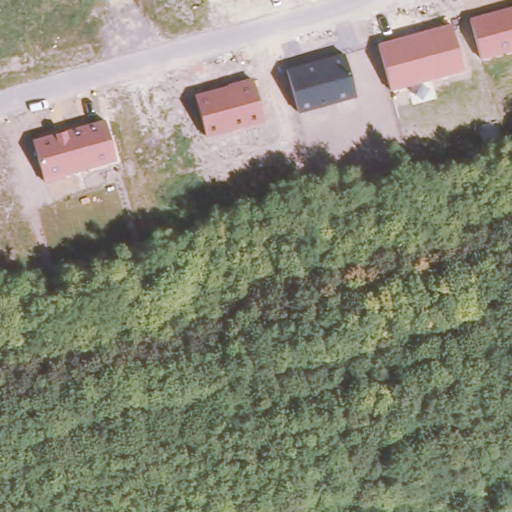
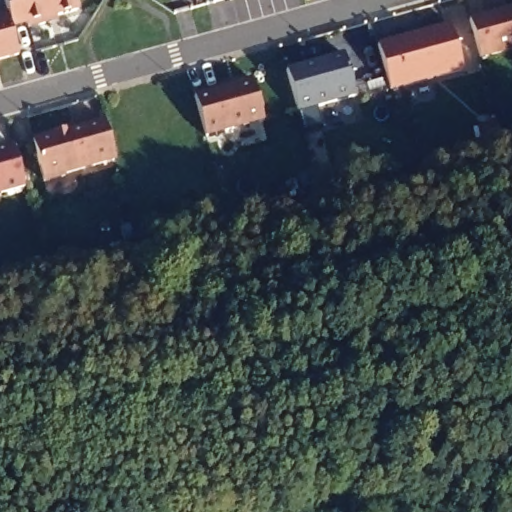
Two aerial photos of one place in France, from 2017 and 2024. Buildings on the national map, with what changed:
new [(78,0),(80,6),(46,16),(47,20),(32,25),(30,21),(13,25),(10,11),(6,0),(78,0)]
unchanged [(470,17),(512,7),(512,51),(482,59),(470,17)]
new [(13,25),(21,51),(0,57),(0,14),(10,11),(13,25)]
unchanged [(378,44),(452,24),(465,72),(391,91),(378,44)]
unchanged [(287,70),(345,54),(356,96),(299,112),(287,70)]
unchanged [(195,95),(227,85),(227,84),(252,78),(265,122),(207,138),(195,95)]
unchanged [(105,120),(116,161),(66,175),(66,177),(46,184),(32,140),(105,120)]
new [(27,184),(0,192),(0,147),(16,142),(27,184)]

